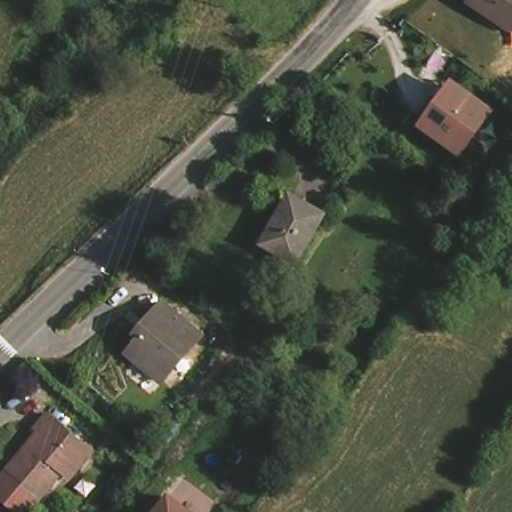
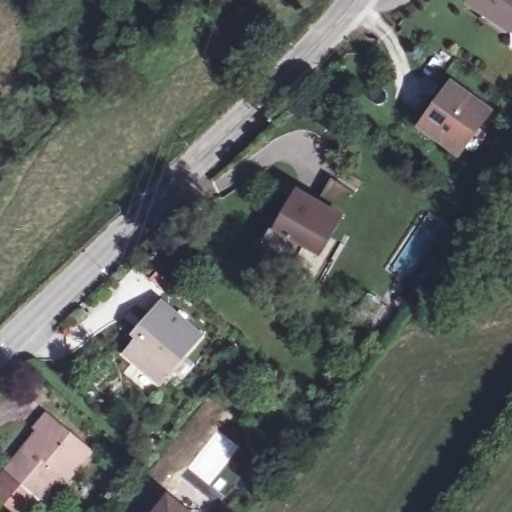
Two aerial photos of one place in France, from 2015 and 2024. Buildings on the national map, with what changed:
unchanged [(476,0),(512,0),(512,25),(476,0)]
unchanged [(447,86),(482,112),(453,151),(418,125),(447,86)]
unchanged [(295,195),(330,215),(299,265),(266,245),(295,195)]
unchanged [(128,351),(150,323),(146,320),(163,299),(200,331),(160,378),(128,351)]
unchanged [(64,466),(42,491),(10,464),(42,427),(38,423),(49,410),(93,448),(82,461),(72,472),(64,466)]
unchanged [(23,512),(22,512),(0,493),(0,475),(5,470),(37,497),(23,512)]
unchanged [(194,512),(147,512),(165,489),(194,512)]

